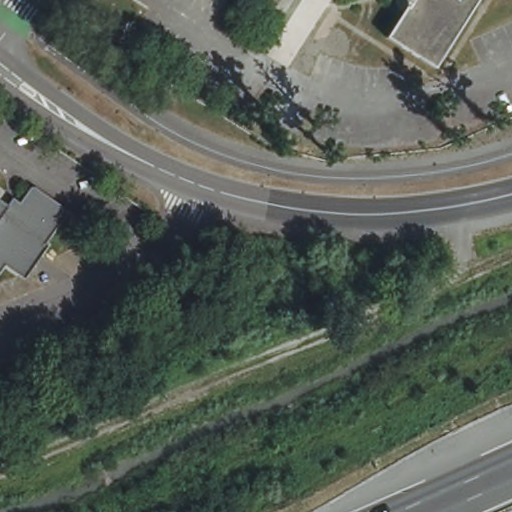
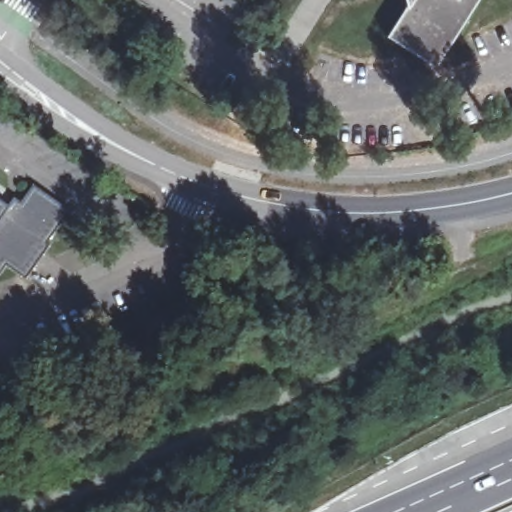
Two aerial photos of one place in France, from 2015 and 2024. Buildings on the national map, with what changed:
unchanged [(390,37),(410,8),(408,0),(480,0),(437,67),(390,37)]
unchanged [(7,214),(15,211),(30,191),(32,191),(66,214),(67,219),(47,249),(50,251),(25,286),(4,272),(0,278),(0,209),(7,214)]

